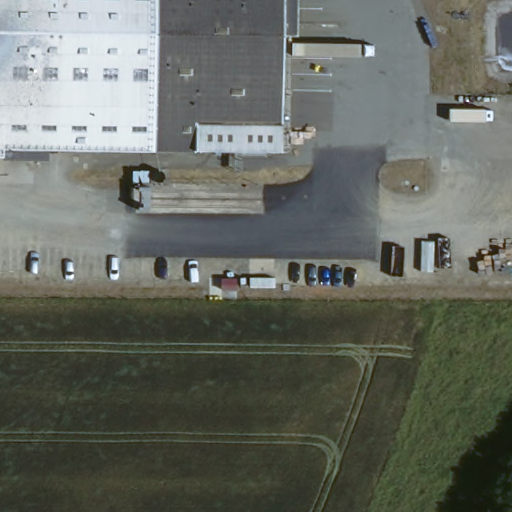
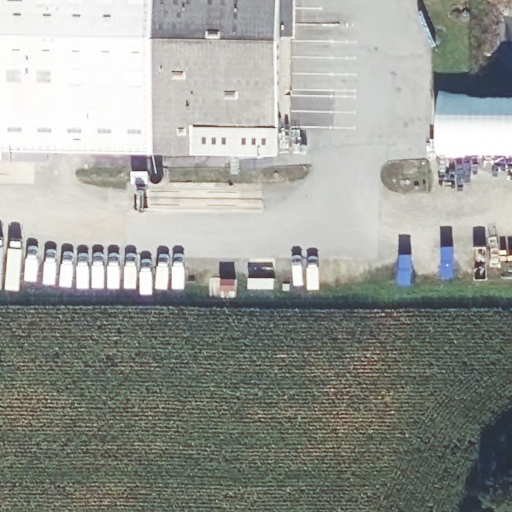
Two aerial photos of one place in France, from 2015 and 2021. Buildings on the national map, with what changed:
unchanged [(288,155),(5,146),(5,150),(0,150),(0,0),(287,0),(288,155)]
new [(439,95),(512,97),(512,157),(437,155),(439,95)]

